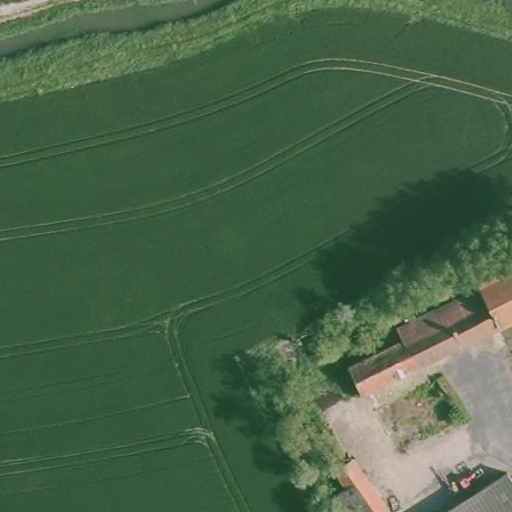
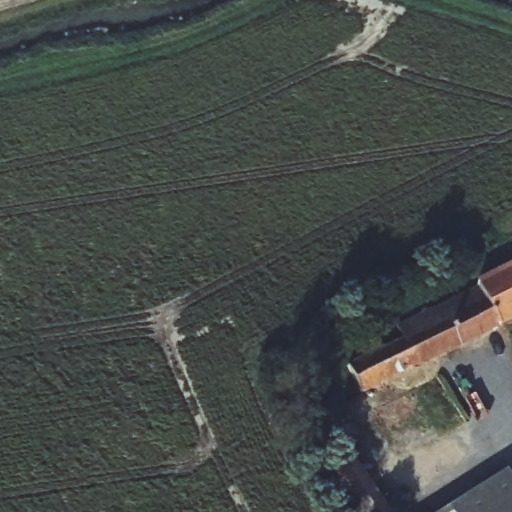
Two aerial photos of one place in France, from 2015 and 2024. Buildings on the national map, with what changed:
unchanged [(348,360),(355,357),(385,342),(404,332),(399,325),(418,315),(424,312),(476,285),(478,284),(478,277),(488,272),(512,261),(512,309),(361,387),(356,377),(348,360)]
unchanged [(351,448),(389,507),(381,512),(354,512),(338,488),(346,482),(343,477),(333,461),(343,454),(351,448)]
unchanged [(508,465),(512,472),(512,512),(433,512),(508,465)]

